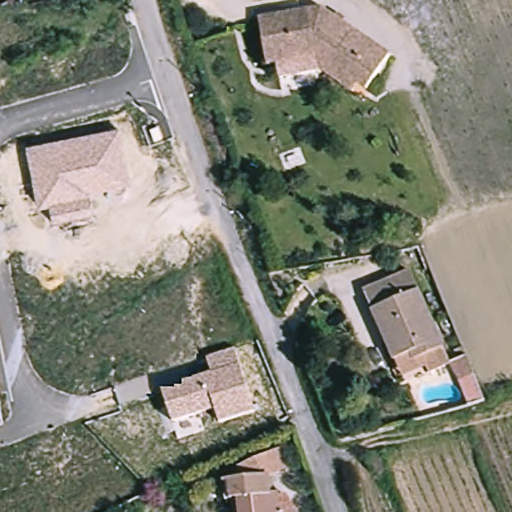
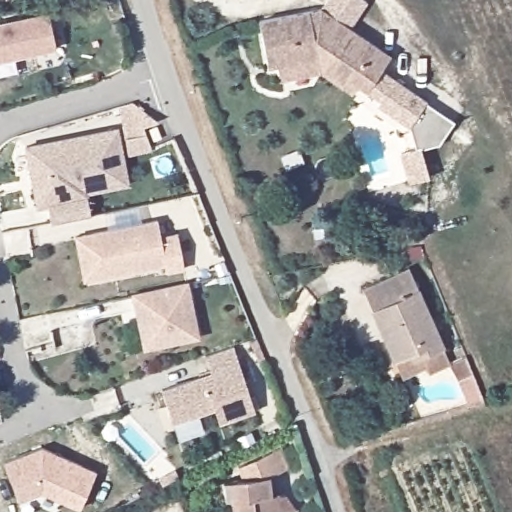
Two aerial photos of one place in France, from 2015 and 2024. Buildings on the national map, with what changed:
new [(322,10),(327,0),(364,0),(368,3),(353,26),(322,10)]
unchanged [(255,15),(321,9),(391,47),(371,80),(338,61),(337,42),(322,44),(323,54),(259,58),(255,15)]
new [(0,24),(49,15),(56,49),(0,61),(0,24)]
unchanged [(364,92),(327,70),(261,74),(259,58),(323,54),(322,44),(337,42),(338,61),(371,80),(364,92)]
new [(416,150),(410,129),(377,105),(379,101),(364,92),(371,80),(378,69),(427,100),(425,102),(454,122),(439,145),(420,150),(429,177),(409,183),(400,155),(416,150)]
new [(128,159),(125,144),(118,108),(132,105),(157,125),(143,130),(146,137),(150,150),(128,159)]
new [(156,129),(160,140),(153,143),(149,132),(156,129)]
unchanged [(38,209),(26,148),(118,130),(129,184),(85,192),(89,212),(52,220),(48,205),(38,209)]
new [(184,270),(166,272),(165,267),(84,282),(76,236),(157,220),(160,236),(177,233),(184,270)]
unchanged [(412,280),(439,357),(419,366),(415,358),(390,368),(365,297),(412,280)]
new [(144,351),(143,347),(129,350),(123,323),(137,320),(131,293),(189,282),(200,339),(144,351)]
unchanged [(235,347),(240,363),(252,412),(219,426),(214,408),(175,423),(163,389),(211,373),(206,357),(235,347)]
demolished [(465,413),(458,395),(467,391),(468,391),(475,410),(465,413)]
unchanged [(278,444),(287,468),(265,479),(244,481),(236,461),(278,444)]
new [(80,508),(41,491),(19,501),(3,462),(41,447),(96,471),(80,508)]
unchanged [(222,505),(220,484),(244,481),(266,479),(268,505),(277,504),(277,510),(301,507),(301,512),(231,512),(230,505),(222,505)]

